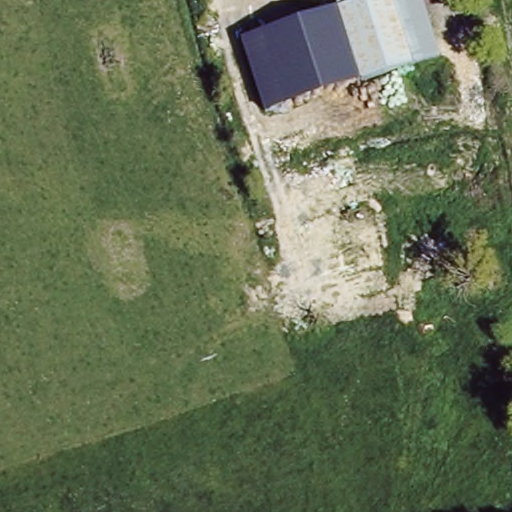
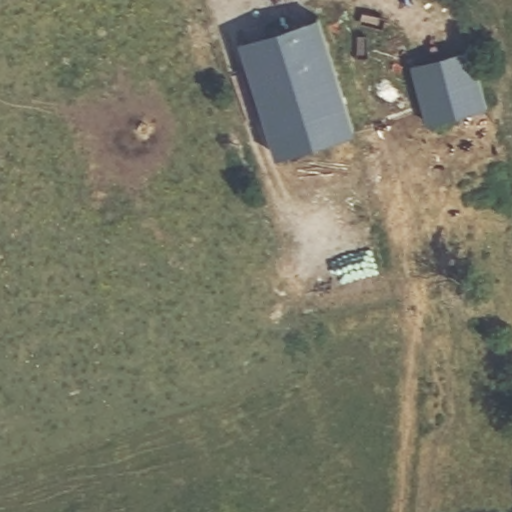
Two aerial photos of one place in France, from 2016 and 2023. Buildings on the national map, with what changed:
demolished [(356,84),(335,11),(332,0),(397,0),(417,63),(356,84)]
demolished [(417,63),(397,0),(420,0),(436,56),(417,63)]
demolished [(263,115),(240,40),(335,11),(356,84),(263,115)]
new [(278,155),(241,39),(320,15),(357,130),(278,155)]
new [(430,123),(412,63),(471,46),(488,106),(430,123)]

